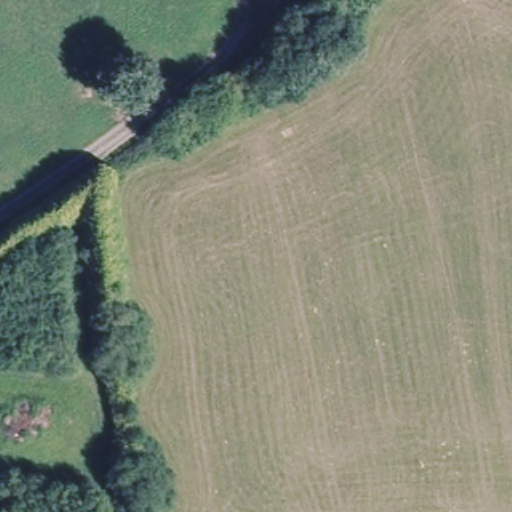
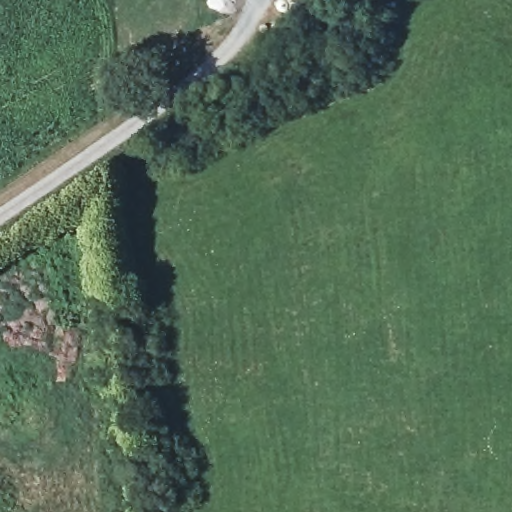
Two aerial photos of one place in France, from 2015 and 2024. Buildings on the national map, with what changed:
[]

